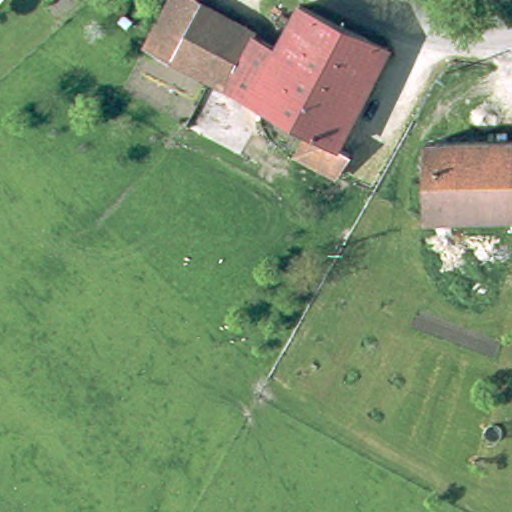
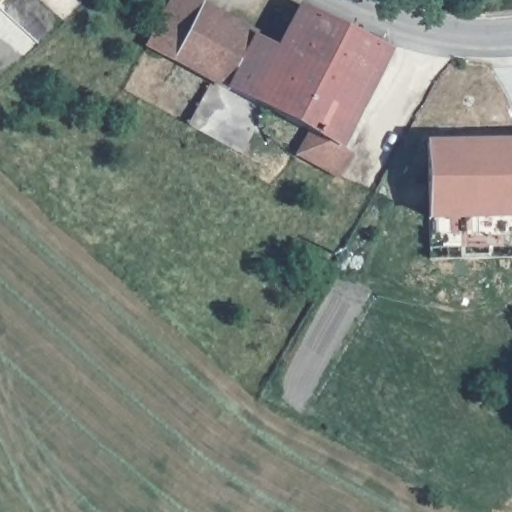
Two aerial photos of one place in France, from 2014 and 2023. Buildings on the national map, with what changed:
unchanged [(163,47),(147,39),(149,35),(153,27),(168,0),(202,0),(172,52),(170,51),(163,47)]
unchanged [(192,62),(172,52),(202,0),(252,27),(225,80),(192,62)]
unchanged [(300,0),(303,0),(388,39),(337,138),(349,145),(339,164),(336,168),(296,146),(299,140),(308,124),(256,96),(225,80),(252,27),(277,40),(300,0)]
unchanged [(461,212),(432,214),(430,160),(429,137),(512,136),(512,210),(489,211),(461,212)]

